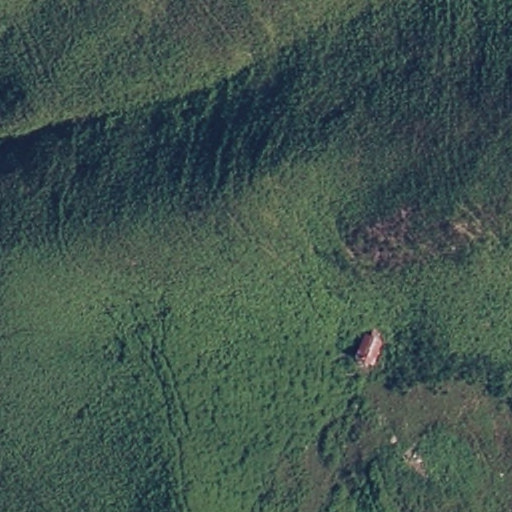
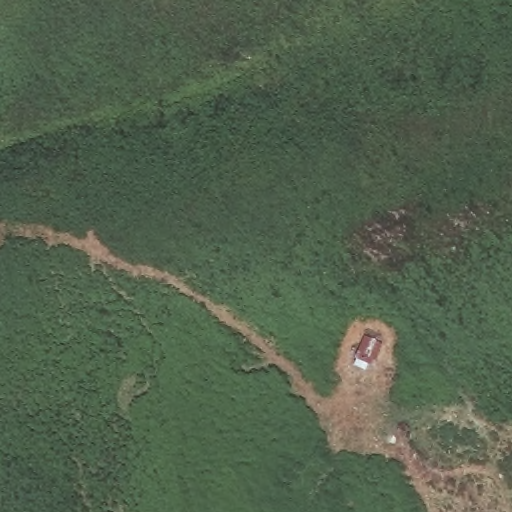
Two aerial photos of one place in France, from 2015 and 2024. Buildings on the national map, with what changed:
unchanged [(357,358),(366,336),(386,342),(374,365),(357,358)]

